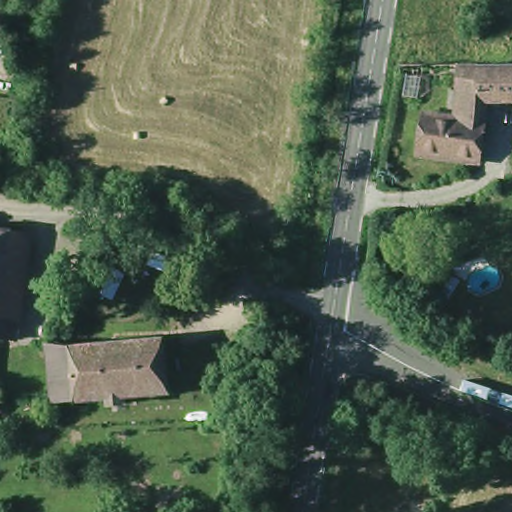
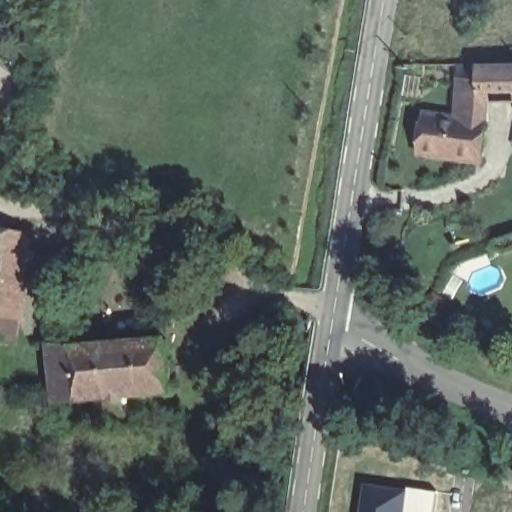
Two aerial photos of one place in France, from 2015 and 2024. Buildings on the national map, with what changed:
unchanged [(466,64),(473,64),(474,67),(483,93),(481,93),(480,124),(451,119),(456,64),(466,64)]
unchanged [(512,93),(483,93),(474,67),(512,67),(512,93)]
unchanged [(480,124),(475,164),(413,154),(420,114),(451,119),(480,124)]
unchanged [(28,232),(13,338),(0,337),(0,229),(28,232)]
unchanged [(105,405),(104,395),(52,400),(46,346),(60,350),(159,340),(165,390),(120,394),(120,403),(105,405)]
new [(408,487),(438,491),(434,512),(357,512),(362,481),(408,487)]

